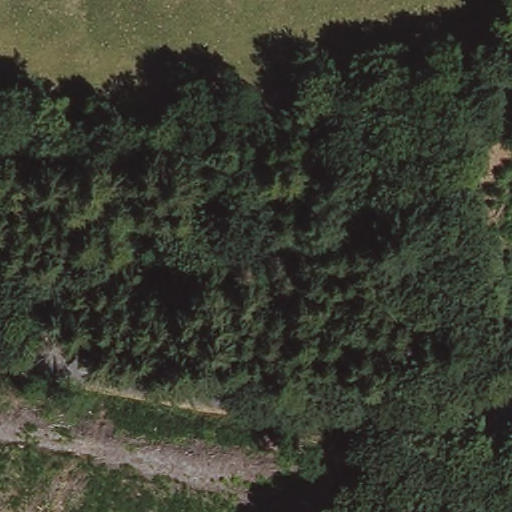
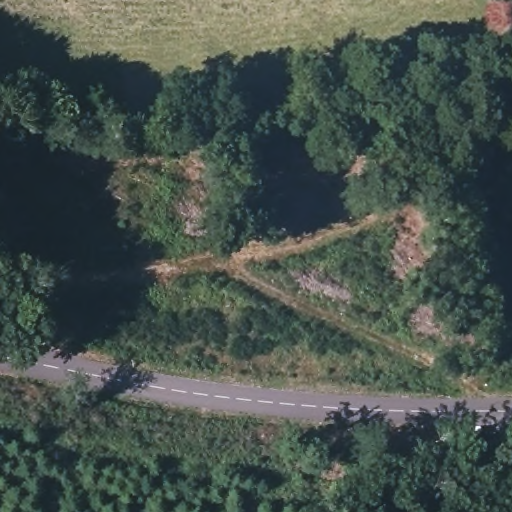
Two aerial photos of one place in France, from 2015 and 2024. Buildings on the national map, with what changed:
[]

